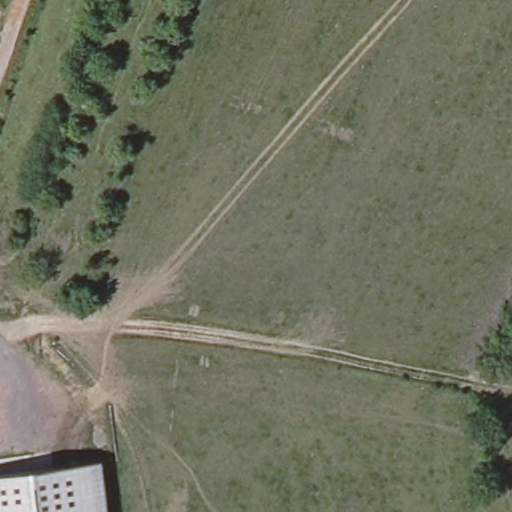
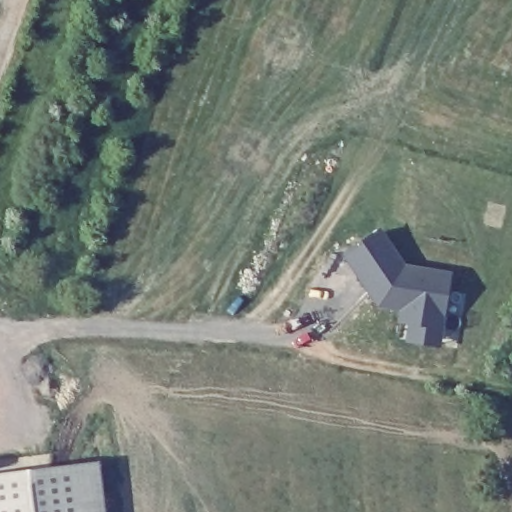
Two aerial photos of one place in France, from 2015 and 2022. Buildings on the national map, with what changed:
new [(410,325),(398,324),(400,310),(378,307),(343,253),(384,227),(408,265),(453,272),(443,348),(407,344),(410,325)]
unchanged [(108,512),(0,512),(0,477),(101,464),(108,512)]

